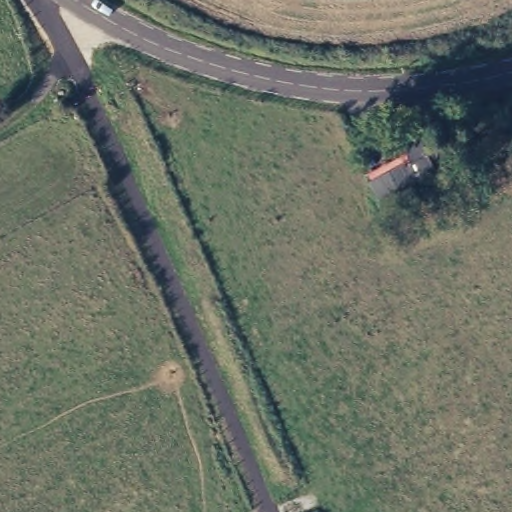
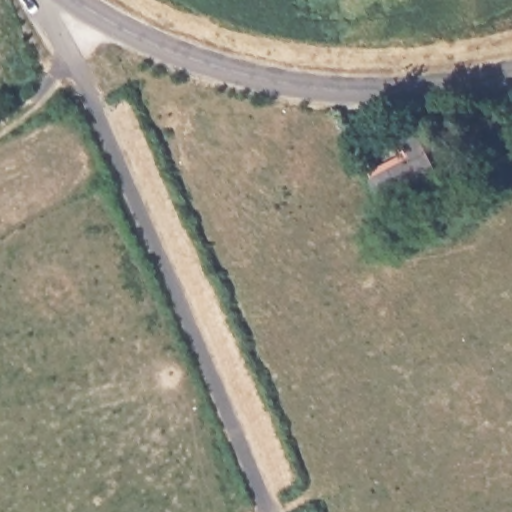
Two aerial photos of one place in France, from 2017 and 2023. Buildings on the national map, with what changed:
unchanged [(413,144),(428,179),(374,208),(364,186),(399,168),(392,153),(413,144)]

